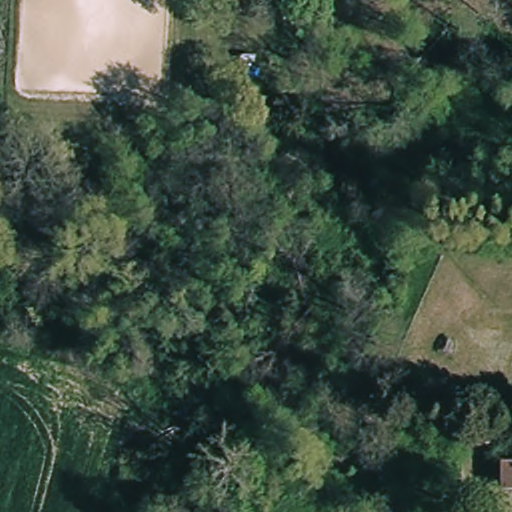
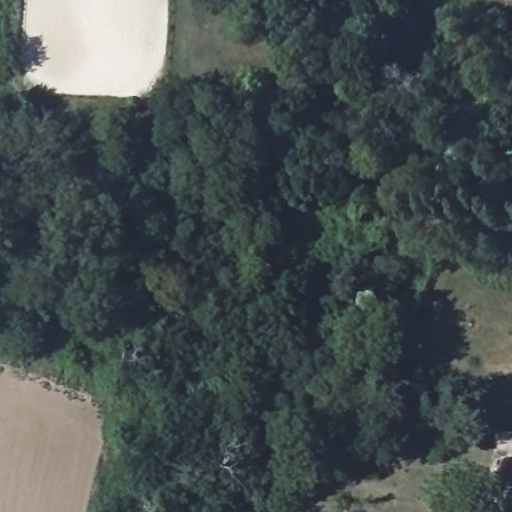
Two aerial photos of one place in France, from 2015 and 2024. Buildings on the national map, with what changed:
unchanged [(493,465),(512,464),(512,493),(493,493),(493,465)]

